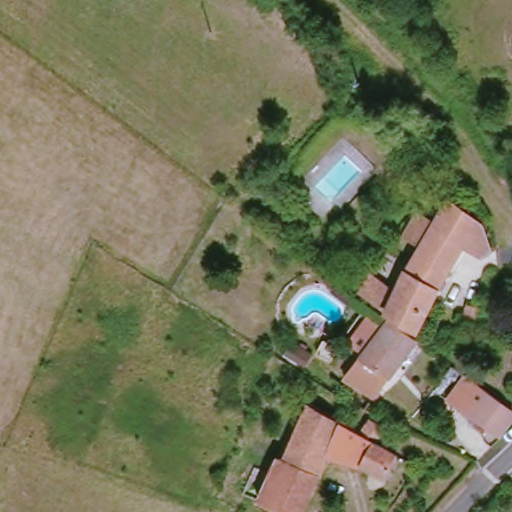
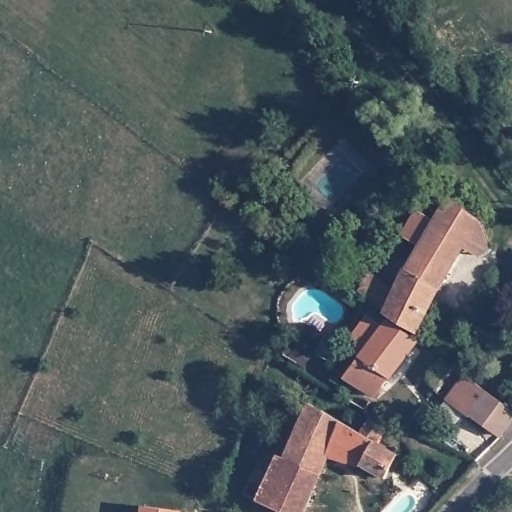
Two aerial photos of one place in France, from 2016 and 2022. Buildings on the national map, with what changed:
unchanged [(430,253),(411,239),(426,216),(443,228),(458,205),(490,228),(497,254),(487,263),(474,253),(433,317),(424,339),(396,319),(371,299),(383,284),(402,300),(430,253)]
unchanged [(423,349),(392,396),(378,396),(374,402),(355,387),(395,328),(423,349)]
unchanged [(512,427),(504,438),(450,404),(468,379),(512,409),(512,427)]
unchanged [(362,429),(374,416),(389,426),(378,438),(402,453),(389,474),(371,464),(333,457),(308,512),(303,512),(265,494),(283,451),(290,453),(310,401),(362,429)]
new [(142,507),(182,511),(182,512),(141,512),(142,507)]

